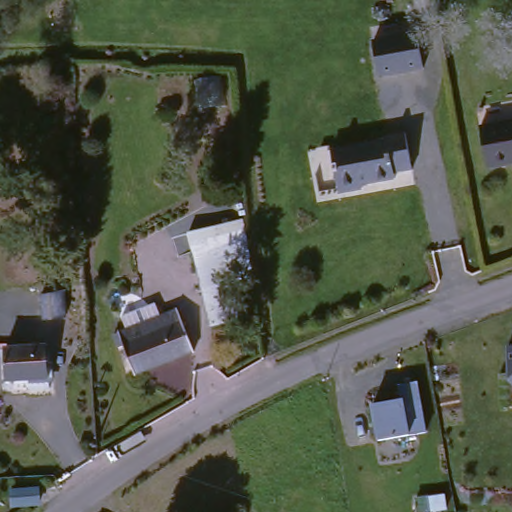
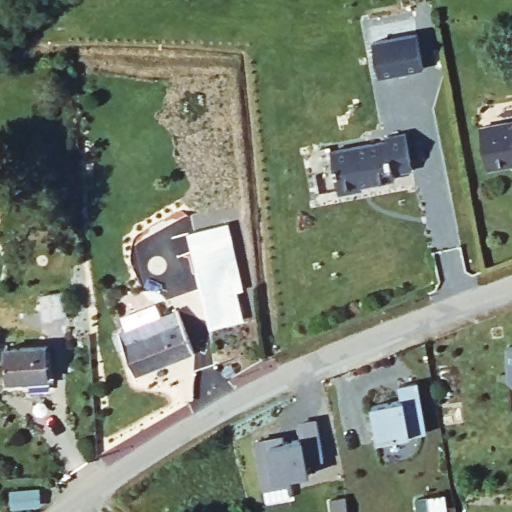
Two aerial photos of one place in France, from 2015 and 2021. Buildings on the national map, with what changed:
unchanged [(416,34),(423,68),(378,76),(372,41),(416,34)]
unchanged [(492,169),(485,126),(512,121),(512,165),(492,169)]
unchanged [(332,150),(387,140),(386,136),(405,132),(412,170),(395,173),(395,179),(362,185),(362,188),(340,192),(332,150)]
unchanged [(194,247),(243,234),(255,279),(240,283),(247,312),(215,321),(194,247)]
unchanged [(41,295),(65,293),(66,318),(42,320),(41,295)]
unchanged [(197,351),(140,372),(125,332),(132,330),(127,317),(161,304),(165,316),(182,310),(197,351)]
unchanged [(52,341),(55,383),(34,385),(33,375),(12,376),(10,344),(52,341)]
unchanged [(512,345),(512,381),(510,378),(509,345),(512,345)]
unchanged [(411,435),(378,440),(372,405),(401,399),(399,385),(418,381),(427,432),(411,435)]
new [(283,433),(286,440),(302,437),(297,420),(317,417),(325,458),(308,461),(310,473),(291,475),(291,482),(264,487),(255,437),(283,433)]
unchanged [(38,505),(13,507),(12,490),(37,489),(38,505)]
demolished [(221,510),(222,512),(217,512),(221,510)]

